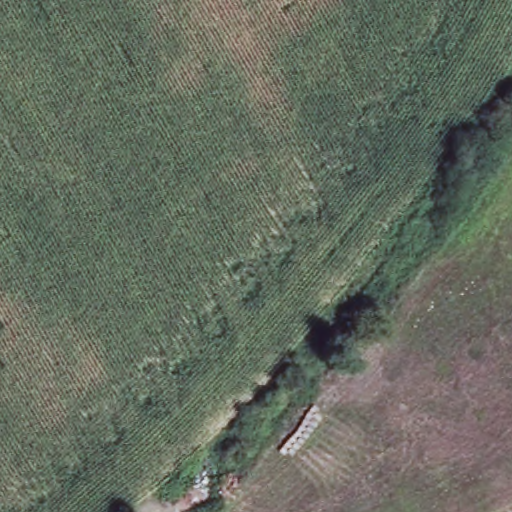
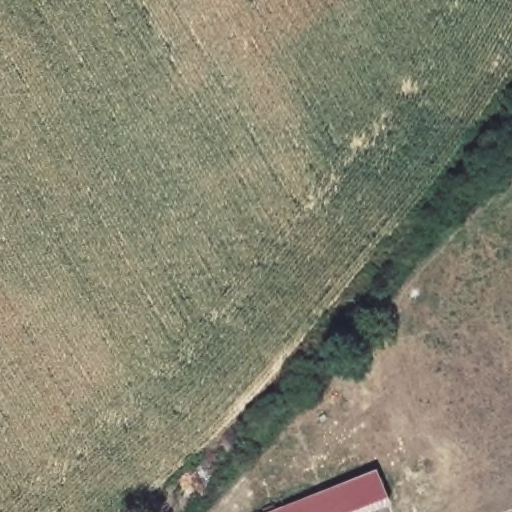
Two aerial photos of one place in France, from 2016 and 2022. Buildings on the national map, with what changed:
new [(368,512),(271,512),(375,470),(387,505),(368,512)]

